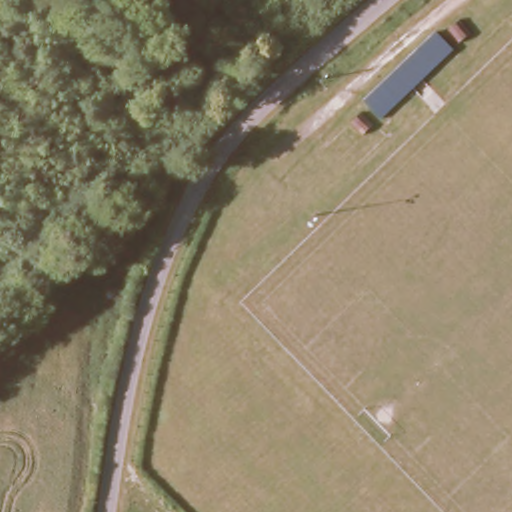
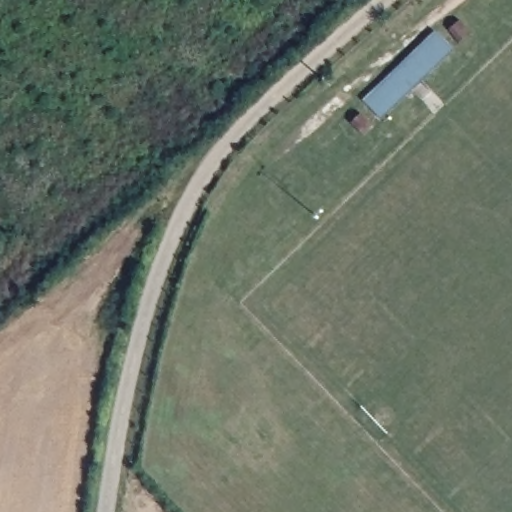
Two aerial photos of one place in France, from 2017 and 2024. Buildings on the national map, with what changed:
unchanged [(368,104),(438,35),(457,54),(388,122),(368,104)]

